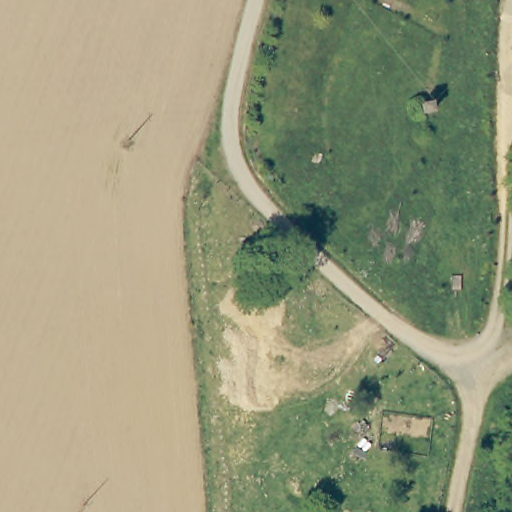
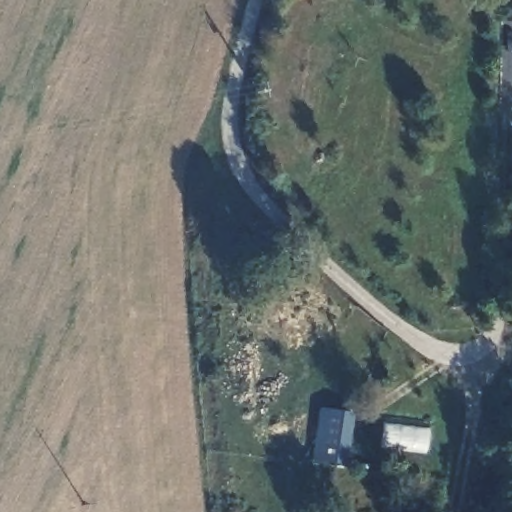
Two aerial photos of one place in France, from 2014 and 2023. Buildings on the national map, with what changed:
new [(318,408),(352,414),(343,465),(311,460),(318,408)]

